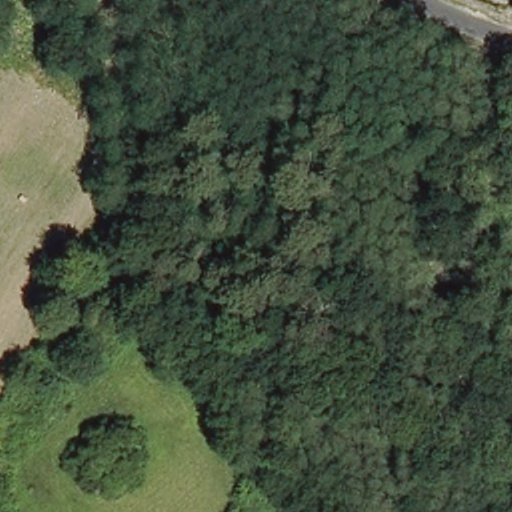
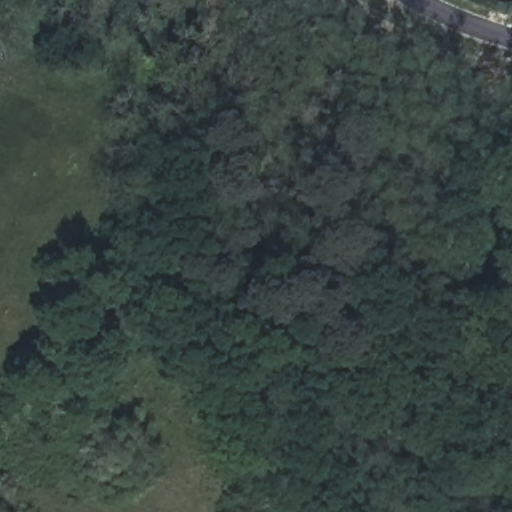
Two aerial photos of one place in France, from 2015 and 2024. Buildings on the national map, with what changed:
[]

